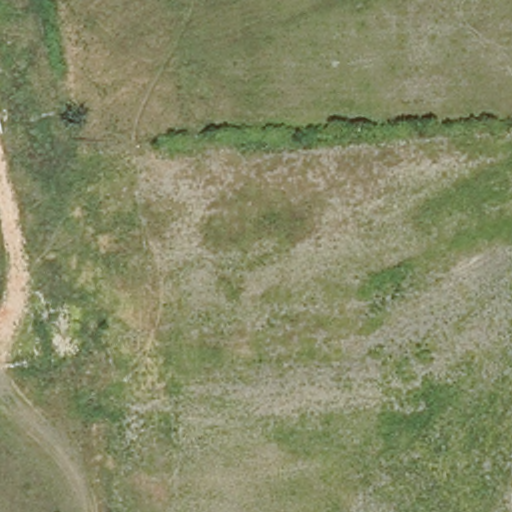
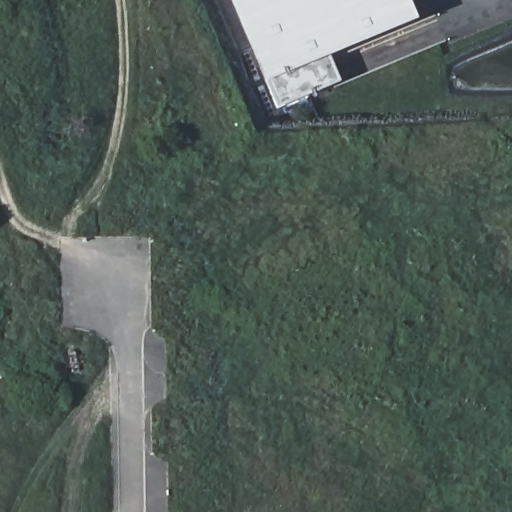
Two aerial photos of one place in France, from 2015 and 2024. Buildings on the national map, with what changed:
new [(268,79),(234,0),(413,0),(419,14),(330,52),(343,79),(279,105),(268,79)]

